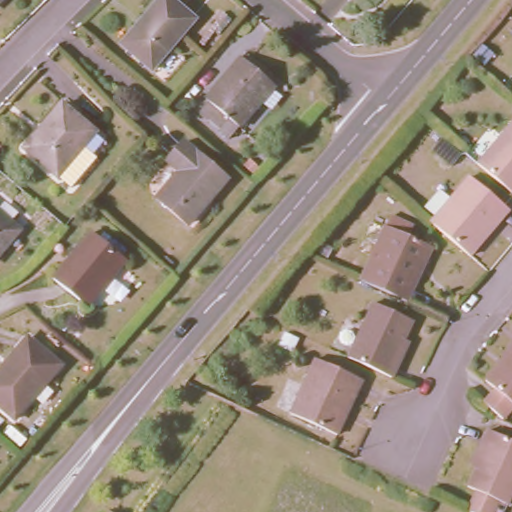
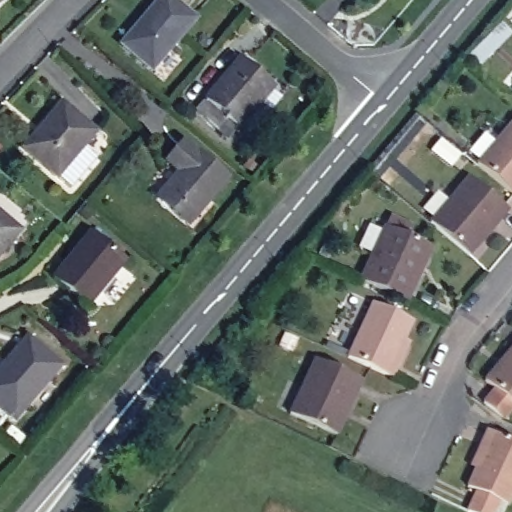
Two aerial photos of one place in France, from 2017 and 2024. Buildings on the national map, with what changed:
unchanged [(195,20),(150,72),(122,47),(133,34),(130,31),(157,0),(171,0),(195,20)]
unchanged [(245,58),(279,86),(243,128),(233,119),(223,131),(199,111),(245,58)]
unchanged [(59,104),(93,133),(55,178),(22,149),(59,104)]
unchanged [(481,161),(512,124),(512,188),(481,161)]
unchanged [(226,179),(186,224),(156,198),(178,172),(166,161),(183,141),(226,179)]
unchanged [(466,252),(429,220),(469,174),(509,209),(486,236),(470,255),(466,252)]
unchanged [(0,246),(0,209),(18,225),(0,246)]
unchanged [(427,243),(430,245),(420,267),(406,298),(358,276),(383,223),(427,243)]
unchanged [(90,232),(123,260),(84,306),(51,279),(90,232)]
unchanged [(396,357),(388,375),(344,355),(369,299),(409,318),(399,337),(404,339),(396,357)]
unchanged [(59,366),(13,419),(0,408),(0,367),(25,338),(59,366)]
unchanged [(488,381),(485,378),(503,357),(512,346),(512,401),(488,381)]
unchanged [(334,429),(291,410),(317,355),(363,377),(349,407),(338,431),(334,429)]
unchanged [(504,505),(495,500),(490,512),(466,512),(475,491),(465,487),(475,465),(471,463),(479,443),(488,426),(512,438),(512,488),(504,505)]

